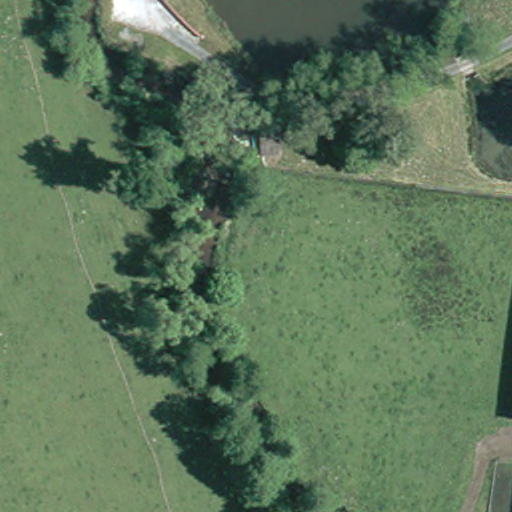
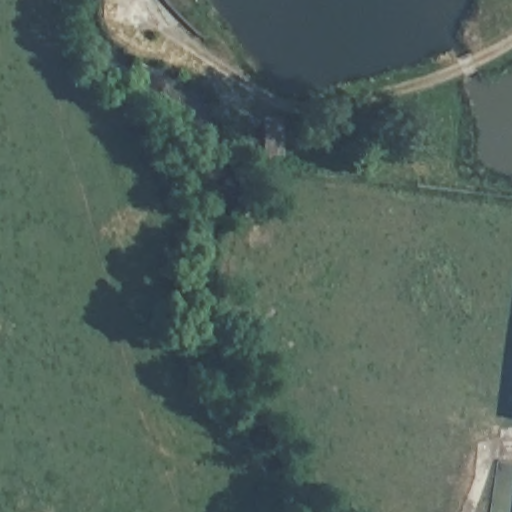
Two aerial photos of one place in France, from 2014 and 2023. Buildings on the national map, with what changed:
unchanged [(168,26),(152,0),(171,0),(182,18),(168,26)]
unchanged [(264,157),(262,121),(277,120),(279,157),(264,157)]

